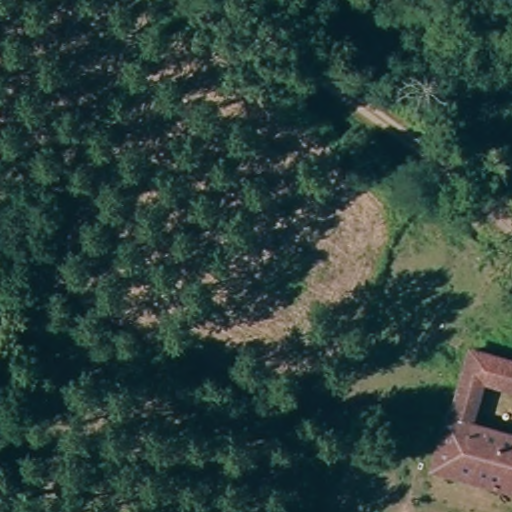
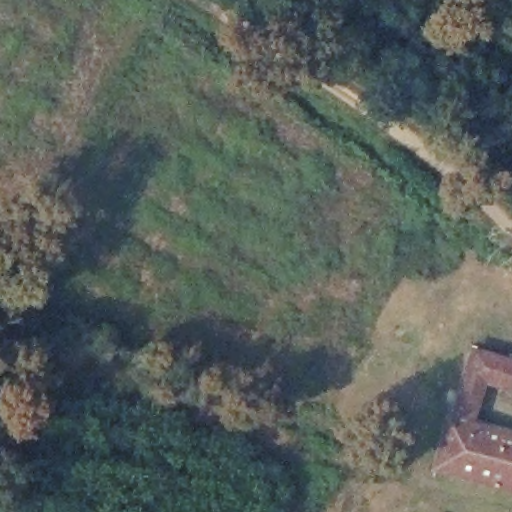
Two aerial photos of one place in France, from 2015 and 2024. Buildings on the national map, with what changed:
unchanged [(512,392),(504,390),(508,370),(471,360),(474,350),(486,337),(512,345),(512,392)]
unchanged [(508,370),(504,390),(495,423),(477,420),(474,430),(492,433),(477,490),(435,480),(471,360),(508,370)]
unchanged [(393,417),(396,407),(411,411),(406,439),(382,434),(387,415),(393,417)]
unchanged [(512,439),(512,500),(477,490),(492,433),(512,439)]

